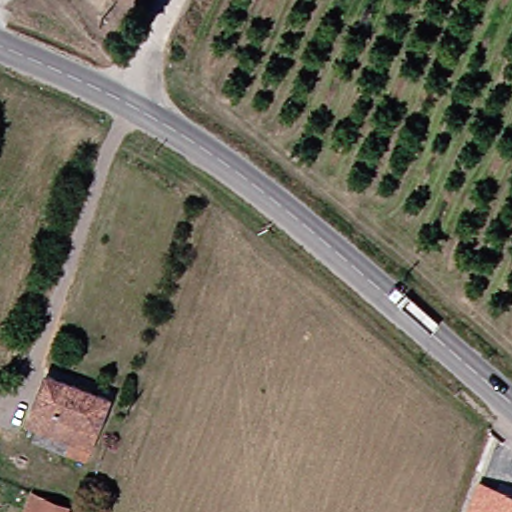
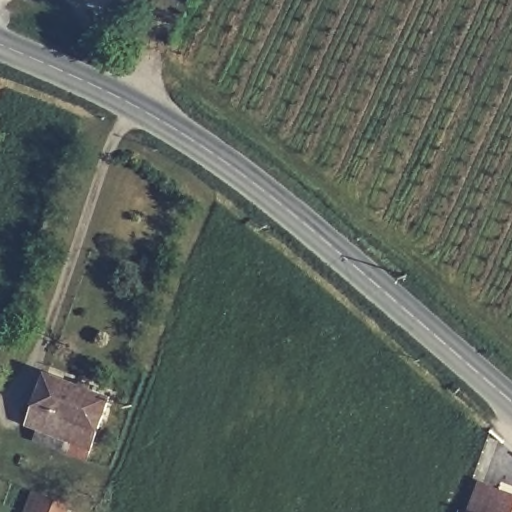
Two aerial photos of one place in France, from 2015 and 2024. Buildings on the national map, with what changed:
unchanged [(43,426),(32,422),(50,372),(113,395),(91,457),(38,438),(43,426)]
unchanged [(512,497),(512,512),(478,512),(488,487),(512,497)]
unchanged [(67,506),(65,512),(34,512),(41,496),(67,506)]

